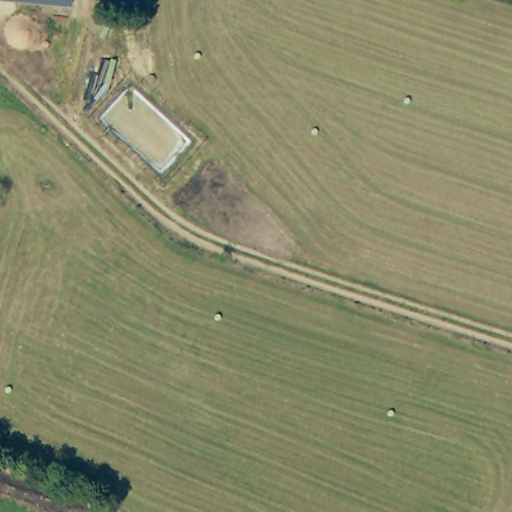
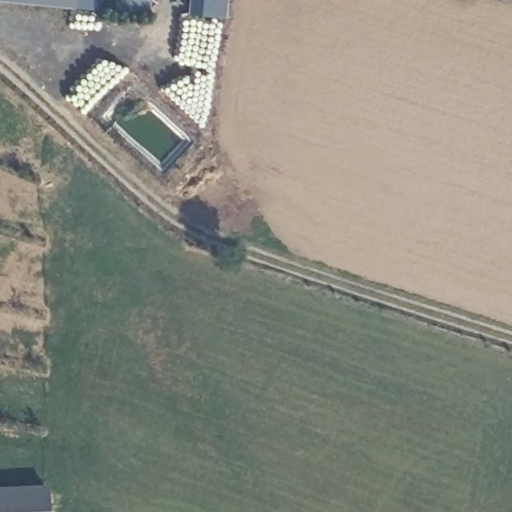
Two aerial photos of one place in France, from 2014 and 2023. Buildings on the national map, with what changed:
unchanged [(69,6),(3,0),(70,0),(69,6)]
new [(70,0),(95,0),(94,9),(69,6),(70,0)]
unchanged [(147,11),(102,6),(102,0),(148,0),(147,11)]
new [(222,16),(182,12),(184,0),(224,0),(222,16)]
new [(0,512),(0,489),(44,487),(46,512),(0,512)]

